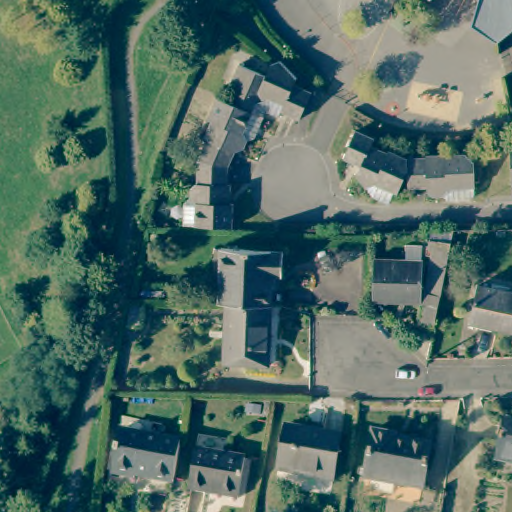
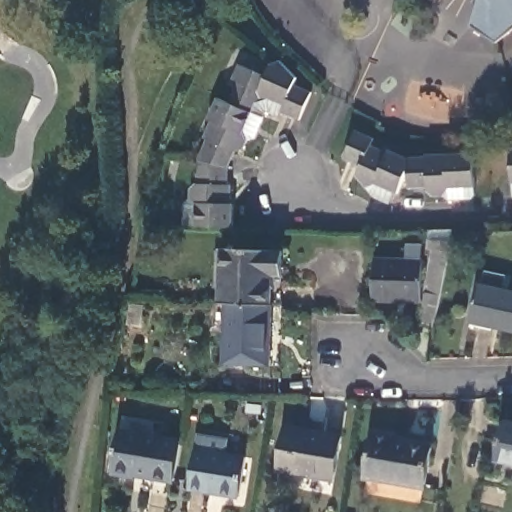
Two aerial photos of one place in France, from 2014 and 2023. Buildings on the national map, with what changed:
unchanged [(500,39),(476,24),(482,0),(512,0),(512,29),(500,39)]
unchanged [(414,25),(405,36),(393,28),(402,16),(414,25)]
unchanged [(189,195),(182,190),(183,181),(190,175),(194,175),(194,151),(202,129),(198,126),(205,108),(201,106),(210,86),(221,90),(227,75),(222,72),(230,53),(257,64),(262,51),(273,47),(288,62),(285,70),(301,76),(290,104),(272,97),(271,100),(258,96),(249,120),(244,122),(246,129),(241,140),(237,141),(231,140),(225,157),(224,177),(228,176),(227,195),(231,195),(231,220),(195,219),(191,219),(183,219),(184,200),(189,195)]
unchanged [(455,107),(453,117),(441,115),(443,105),(455,107)]
unchanged [(374,195),(368,185),(358,175),(362,165),(345,157),(357,130),(375,137),(372,144),(388,150),(389,147),(406,155),(427,155),(427,152),(467,150),(475,156),(476,184),(476,190),(472,194),(449,195),(445,191),(432,193),(429,185),(429,184),(410,184),(408,167),(398,191),(395,190),(390,201),(374,195)]
unchanged [(423,320),(435,245),(431,245),(433,238),(426,238),(426,229),(456,227),(439,324),(423,320)]
unchanged [(221,245),(282,248),(281,274),(272,273),(270,301),(225,300),(218,300),(221,245)]
unchanged [(428,257),(425,300),(377,297),(379,255),(428,257)]
unchanged [(475,318),(482,281),(512,288),(512,327),(475,318)]
unchanged [(267,362),(223,358),(225,300),(270,301),(267,362)]
unchanged [(139,328),(129,326),(131,306),(142,307),(139,328)]
unchanged [(500,457),(509,416),(512,417),(512,460),(500,457)]
unchanged [(346,434),(338,476),(281,466),(290,423),(346,434)]
unchanged [(140,472),(139,475),(116,470),(125,427),(185,438),(177,480),(140,472)]
unchanged [(368,472),(376,427),(400,431),(399,435),(435,442),(428,484),(368,472)]
unchanged [(243,455),(236,495),(190,485),(197,446),(243,455)]

